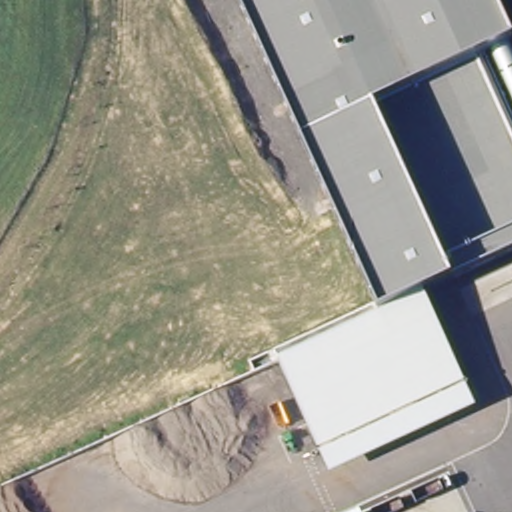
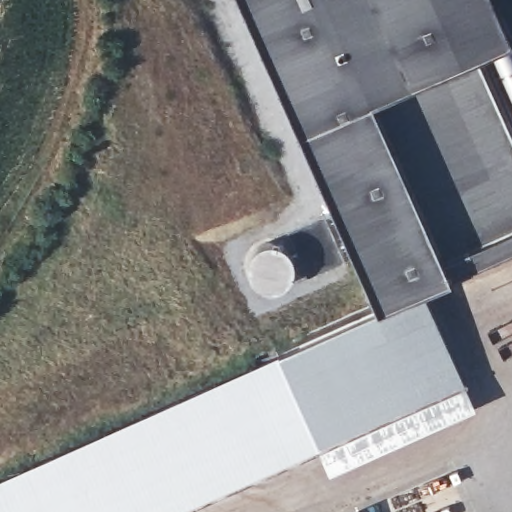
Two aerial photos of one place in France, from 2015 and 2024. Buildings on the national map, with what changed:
unchanged [(512,252),(453,278),(421,293),(475,407),(330,472),(278,359),(378,312),(238,0),(495,0),(512,40),(512,252)]
new [(344,260),(310,275),(289,231),(324,215),(344,260)]
new [(278,359),(319,450),(179,512),(0,512),(0,484),(278,359)]
unchanged [(360,512),(355,512),(360,510),(360,512)]

